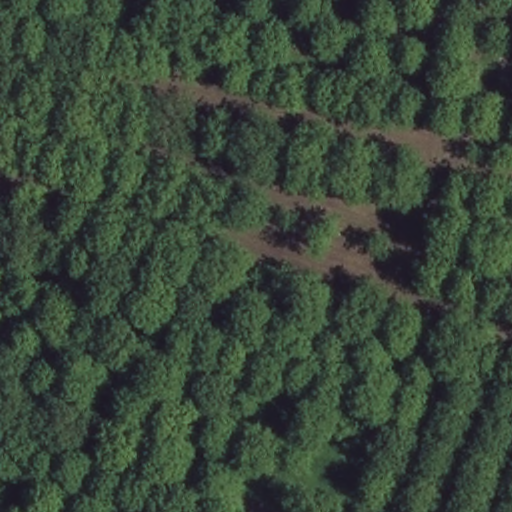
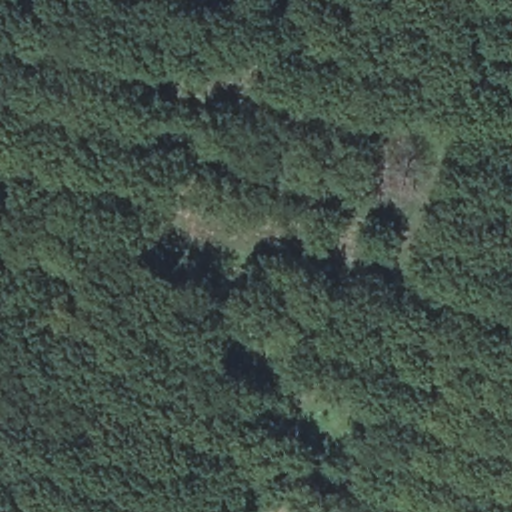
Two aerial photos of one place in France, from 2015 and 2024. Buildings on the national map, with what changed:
[]

